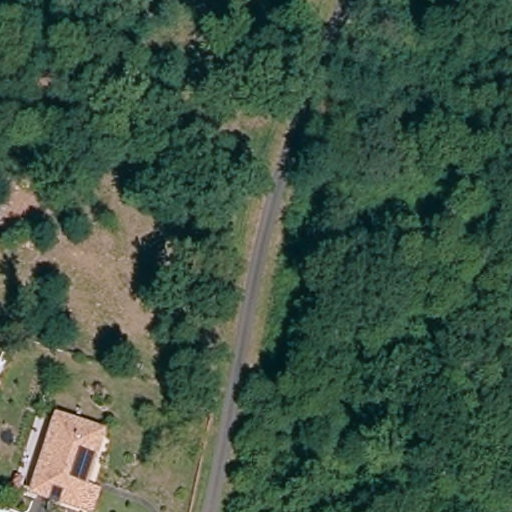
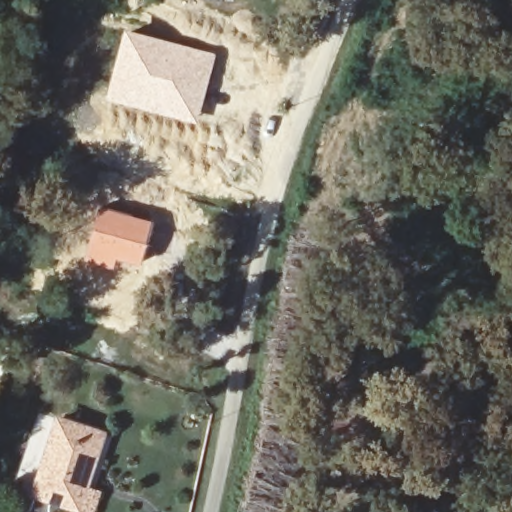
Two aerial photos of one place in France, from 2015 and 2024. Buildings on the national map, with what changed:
new [(127,36),(211,55),(197,117),(113,97),(127,36)]
new [(97,204),(152,220),(140,265),(116,259),(112,270),(82,262),(97,204)]
unchanged [(80,506),(37,494),(56,421),(100,432),(86,485),(102,490),(97,510),(80,506)]

